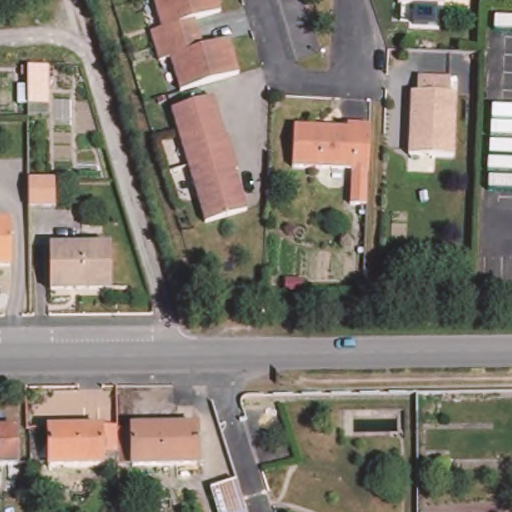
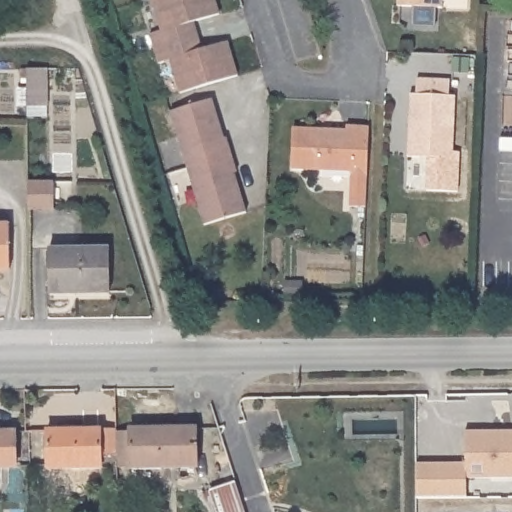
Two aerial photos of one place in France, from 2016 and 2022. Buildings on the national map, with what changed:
unchanged [(237,76),(224,80),(179,93),(169,61),(157,64),(149,35),(160,31),(151,0),(215,0),(219,15),(194,22),(201,50),(227,42),(237,76)]
unchanged [(396,7),(397,0),(443,0),(442,9),(396,7)]
unchanged [(16,92),(26,93),(26,74),(46,74),(47,121),(26,121),(26,112),(16,112),(16,92)]
unchanged [(409,95),(415,95),(416,79),(449,79),(448,96),(455,96),(452,159),(407,157),(409,95)]
unchanged [(211,100),(223,138),(225,137),(236,172),(233,173),(245,212),(204,225),(170,112),(211,100)]
unchanged [(367,152),(366,177),(364,207),(348,207),(350,172),(291,170),(292,128),(345,130),(345,126),(368,127),(367,152)]
unchanged [(53,182),(54,210),(27,210),(27,182),(53,182)]
unchanged [(9,225),(9,270),(0,270),(0,225),(9,225)]
unchanged [(108,248),(109,293),(49,294),(48,249),(108,248)]
unchanged [(130,431),(130,428),(196,427),(197,468),(131,471),(131,468),(117,467),(116,431),(130,431)]
unchanged [(47,470),(47,430),(101,428),(101,429),(116,429),(116,431),(117,467),(47,470)]
new [(464,428),(512,428),(512,477),(465,477),(465,496),(416,497),(417,462),(465,462),(464,428)]
unchanged [(15,431),(15,469),(0,469),(0,431),(15,431)]
unchanged [(245,512),(217,512),(209,490),(235,482),(245,512)]

